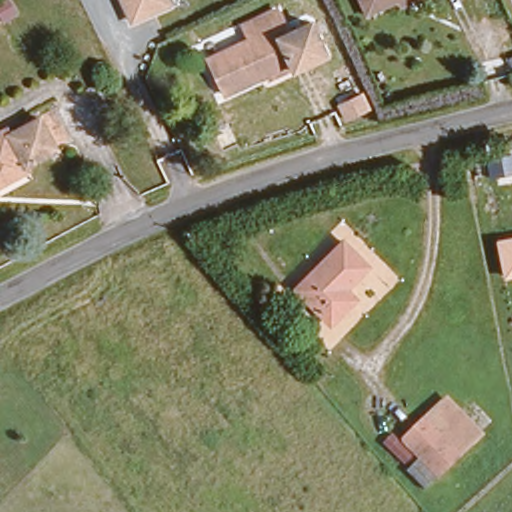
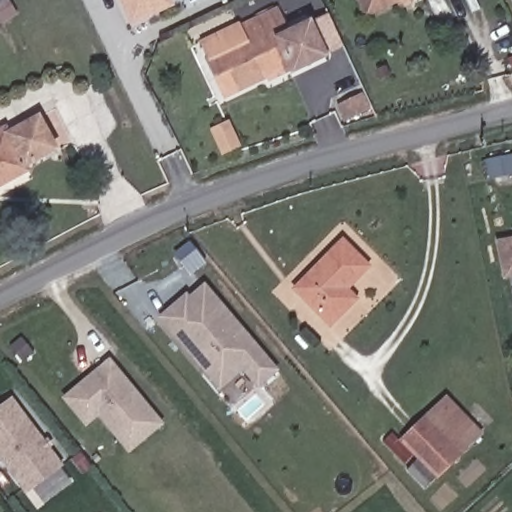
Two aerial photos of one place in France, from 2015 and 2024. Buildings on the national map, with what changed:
unchanged [(127,23),(117,0),(171,0),(174,4),(127,23)]
unchanged [(359,9),(355,0),(398,0),(362,16),(359,9)]
unchanged [(404,0),(407,0),(405,1),(404,0)]
unchanged [(206,60),(245,44),(238,28),(277,9),(284,24),(273,29),(278,38),(210,67),(206,60)]
unchanged [(284,24),(285,28),(310,19),(327,56),(295,70),(278,38),(273,29),(284,24)]
unchanged [(210,67),(278,38),(295,70),(277,79),(274,74),(224,97),(210,67)]
unchanged [(11,139),(43,123),(58,154),(26,169),(30,177),(0,191),(0,141),(10,136),(11,139)]
unchanged [(506,277),(498,242),(512,239),(512,276),(506,277)]
unchanged [(372,267),(351,288),(360,299),(329,329),(295,292),(347,240),(372,267)]
new [(190,298),(205,284),(219,300),(277,369),(258,384),(244,367),(220,386),(161,315),(187,294),(190,298)]
new [(115,434),(98,414),(86,424),(64,398),(109,361),(161,423),(140,441),(129,451),(115,434)]
new [(63,467),(25,495),(0,461),(0,405),(10,397),(63,467)]
unchanged [(480,432),(457,453),(425,417),(423,416),(445,397),(480,432)]
unchanged [(425,417),(457,453),(453,456),(436,473),(401,436),(423,416),(425,417)]

